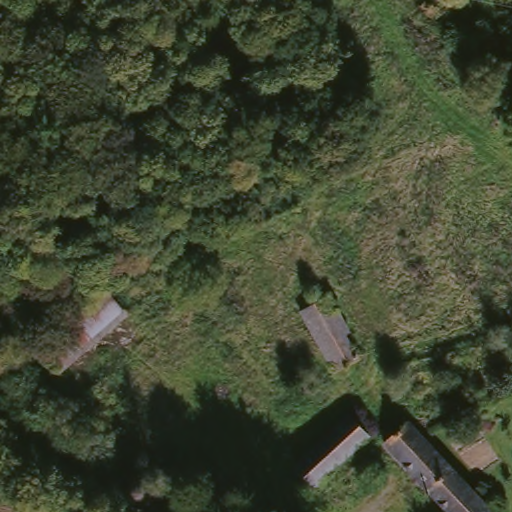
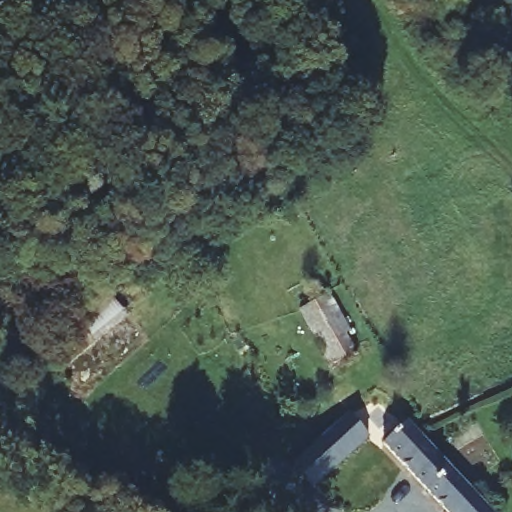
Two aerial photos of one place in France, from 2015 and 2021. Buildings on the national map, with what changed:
unchanged [(124,314),(56,371),(36,347),(103,289),(124,314)]
unchanged [(341,336),(338,339),(349,363),(322,376),(292,316),(323,301),(341,336)]
unchanged [(363,437),(308,486),(290,464),(296,459),(297,458),(328,430),(343,417),(348,422),(358,433),(359,434),(363,437)]
unchanged [(402,422),(490,512),(436,512),(374,447),(402,422)]
unchanged [(294,509),(292,512),(263,512),(273,497),(294,509)]

